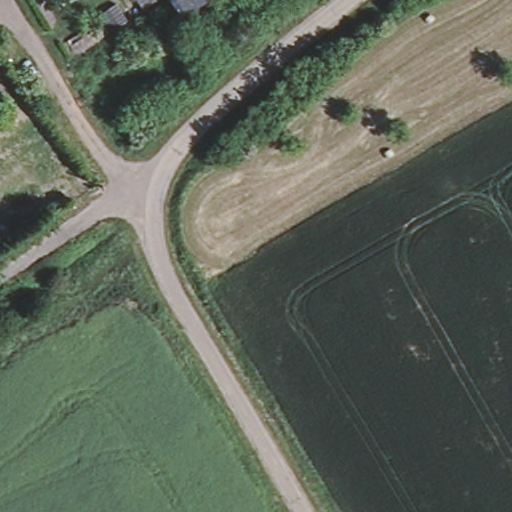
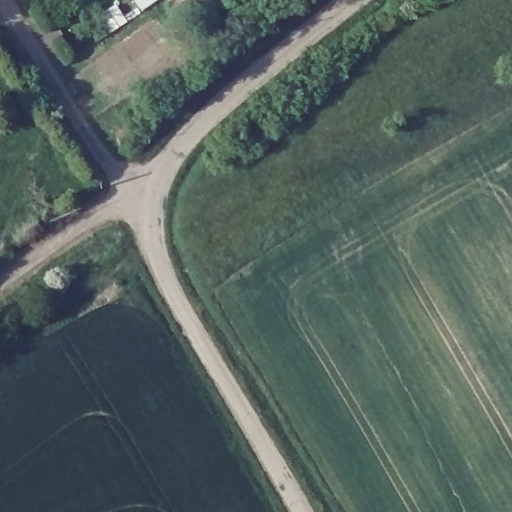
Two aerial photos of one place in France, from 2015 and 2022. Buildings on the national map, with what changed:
unchanged [(179,15),(169,0),(203,0),(179,15)]

